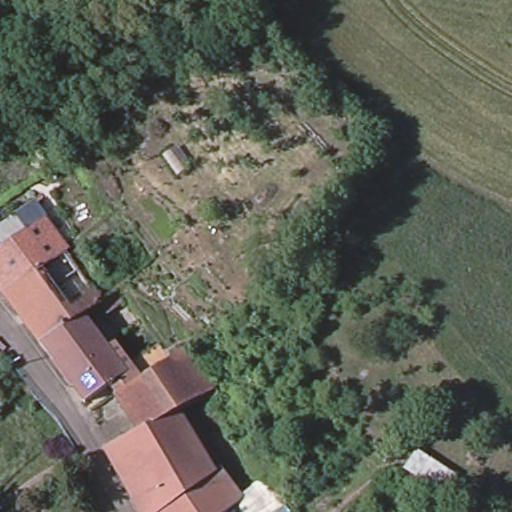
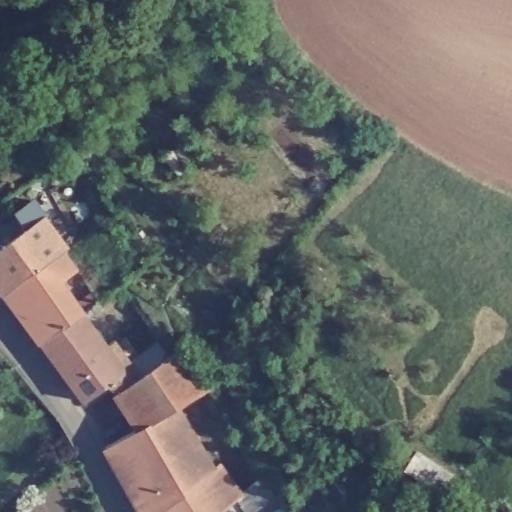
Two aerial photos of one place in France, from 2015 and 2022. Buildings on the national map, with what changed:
unchanged [(29,225),(19,210),(34,200),(44,214),(68,247),(4,290),(0,285),(0,245),(10,237),(29,225)]
unchanged [(21,313),(4,290),(68,247),(101,297),(83,310),(41,339),(21,313)]
unchanged [(83,310),(100,335),(60,366),(41,339),(83,310)]
unchanged [(131,411),(115,389),(110,381),(84,397),(60,366),(100,335),(111,350),(117,346),(133,367),(161,350),(166,355),(186,341),(198,360),(131,411)]
unchanged [(131,411),(198,360),(214,382),(179,403),(178,401),(139,424),(131,411)]
unchanged [(196,434),(174,450),(125,479),(106,443),(139,424),(178,401),(179,403),(196,434)]
unchanged [(125,479),(174,450),(196,434),(214,466),(152,512),(143,512),(125,479)]
unchanged [(399,470),(413,449),(451,474),(437,496),(399,470)]
unchanged [(214,466),(218,463),(229,477),(240,490),(241,491),(261,476),(279,505),(268,512),(152,512),(214,466)]
unchanged [(283,512),(268,512),(279,505),(283,512)]

